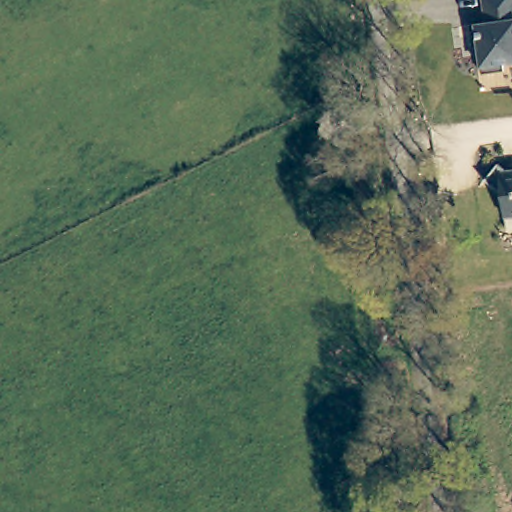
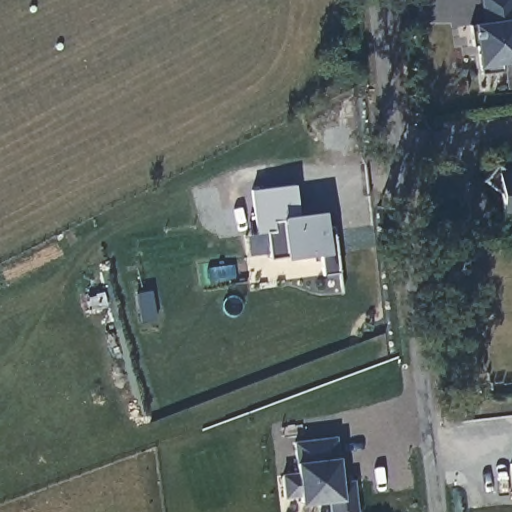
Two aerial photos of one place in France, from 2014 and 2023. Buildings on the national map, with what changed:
unchanged [(481,0),(512,0),(512,63),(503,64),(503,71),(482,74),(483,66),(479,68),(473,23),(485,21),(481,0)]
unchanged [(505,218),(501,195),(485,182),(497,166),(507,172),(512,171),(512,217),(505,218)]
new [(324,275),(320,254),(286,257),(268,259),(266,254),(245,257),(243,236),(257,234),(250,191),(296,184),(299,214),(325,211),(328,227),(334,225),(340,273),(324,275)]
new [(327,504),(301,505),(300,497),(285,498),(282,473),(296,471),(295,463),(294,441),(338,436),(339,457),(342,481),(355,480),(358,512),(329,512),(327,504)]
new [(510,465),(512,465),(512,475),(510,465)]

